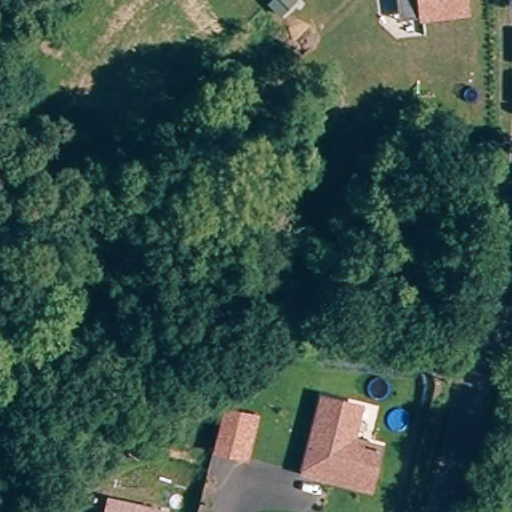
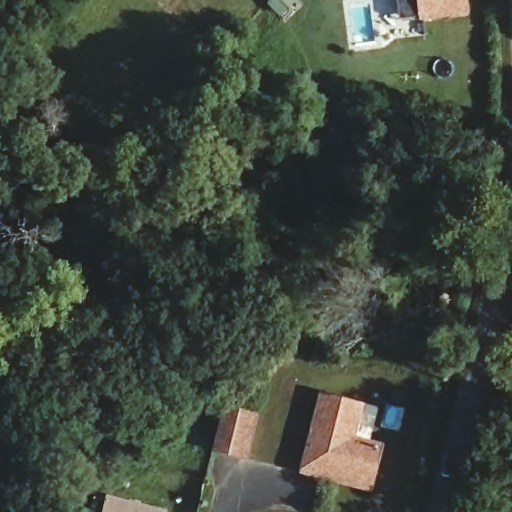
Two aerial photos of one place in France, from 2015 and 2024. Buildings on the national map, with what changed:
unchanged [(404,23),(401,0),(468,0),(471,17),(404,23)]
unchanged [(325,399),(365,410),(356,442),(385,450),(375,486),(325,473),(323,478),(306,474),(325,399)]
unchanged [(224,414),(247,420),(237,463),(216,457),(206,455),(217,412),(224,414)]
unchanged [(165,512),(110,512),(114,497),(166,510),(165,512)]

